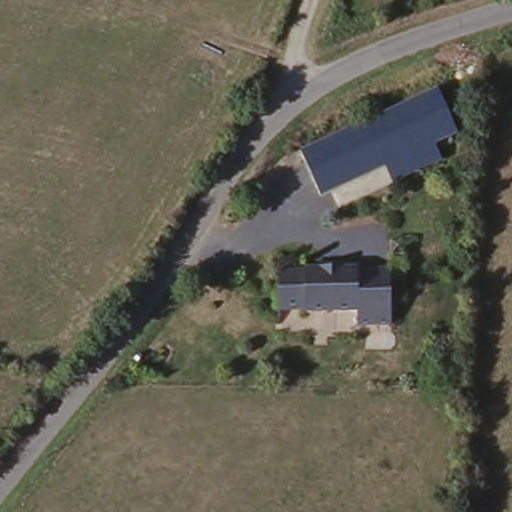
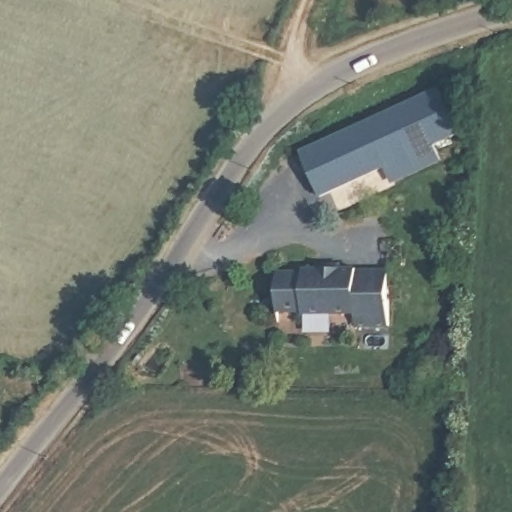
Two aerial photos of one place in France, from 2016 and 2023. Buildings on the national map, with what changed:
unchanged [(298,148),(431,93),(450,138),(432,147),(438,160),(385,185),(377,174),(321,199),(298,148)]
unchanged [(351,332),(355,317),(280,317),(277,270),(389,267),(390,331),(351,332)]

